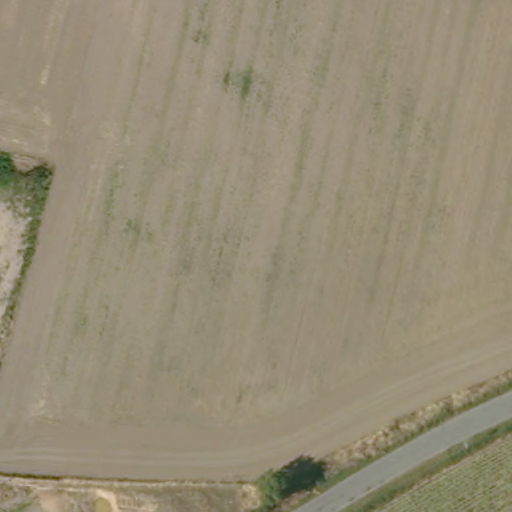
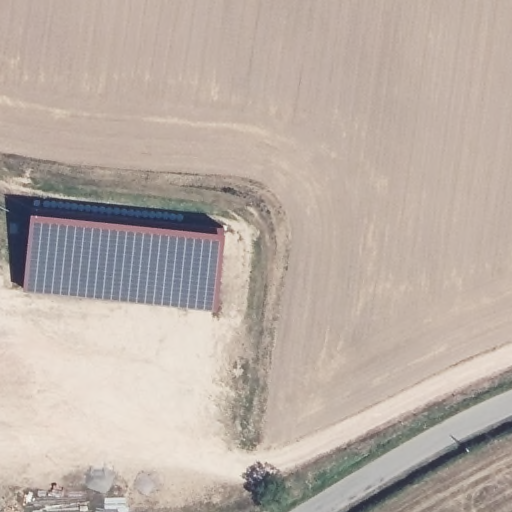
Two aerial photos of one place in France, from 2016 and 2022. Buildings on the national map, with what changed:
new [(219,314),(27,292),(34,222),(223,244),(219,314)]

